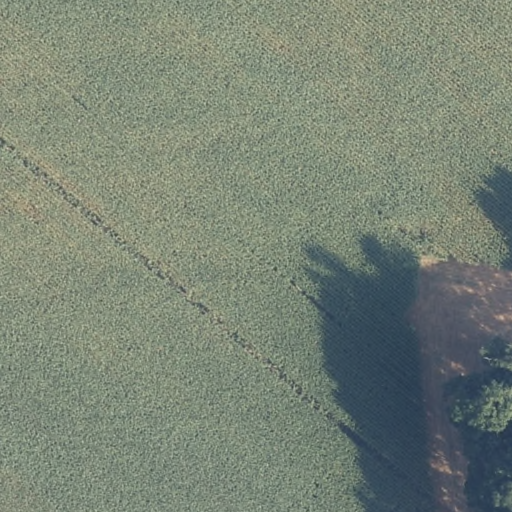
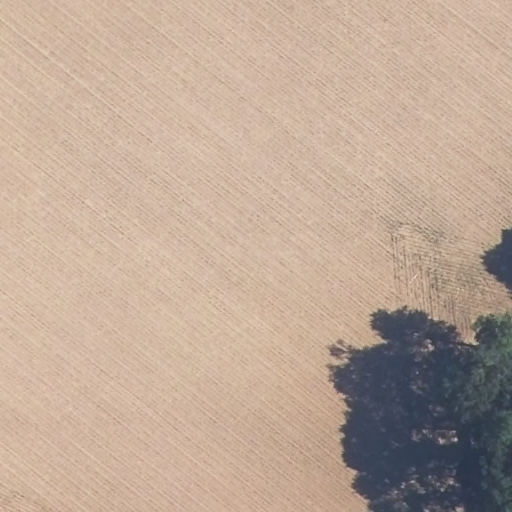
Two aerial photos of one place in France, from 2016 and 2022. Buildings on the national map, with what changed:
[]

